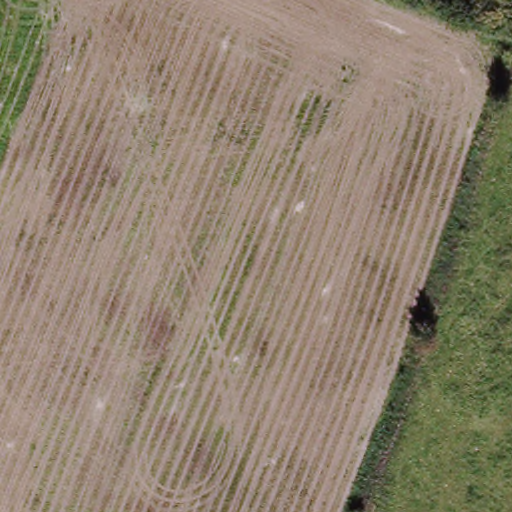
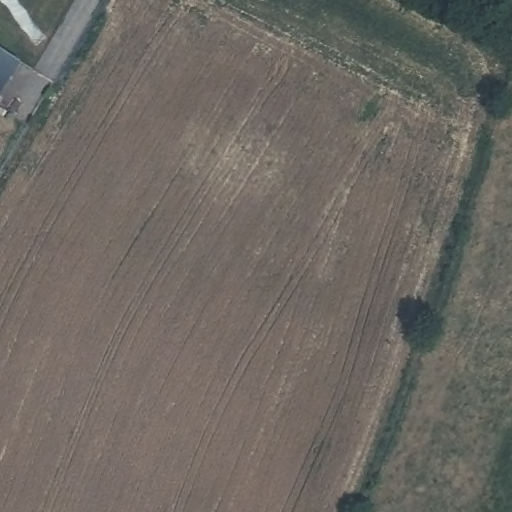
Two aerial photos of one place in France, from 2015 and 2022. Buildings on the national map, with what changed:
new [(0,95),(0,49),(21,63),(0,95)]

